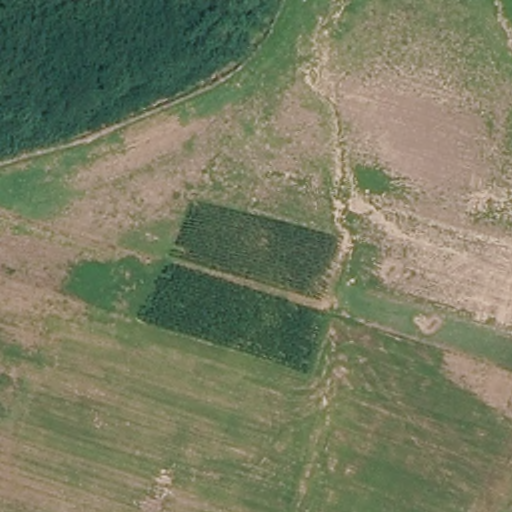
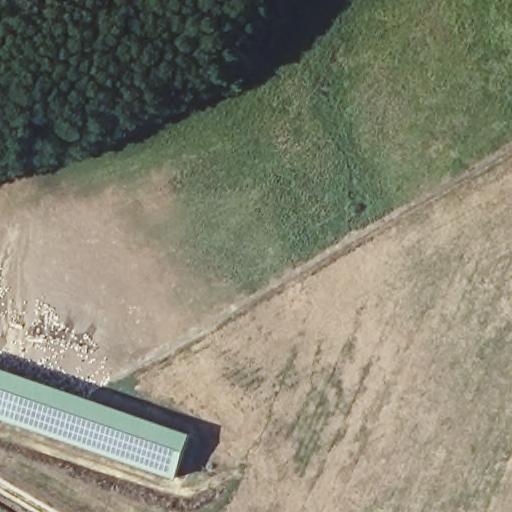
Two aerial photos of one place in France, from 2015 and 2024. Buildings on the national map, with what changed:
new [(191,436),(176,480),(0,419),(0,367),(191,436)]

